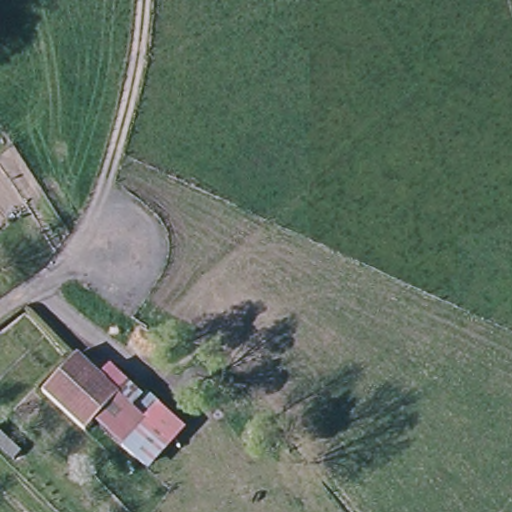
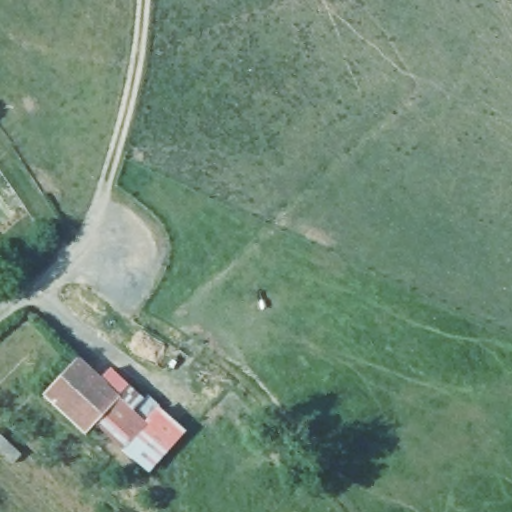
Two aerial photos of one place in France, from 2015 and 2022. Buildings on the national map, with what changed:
unchanged [(121,397),(96,424),(87,434),(42,394),(77,357),(121,397)]
unchanged [(96,424),(121,397),(147,422),(122,448),(96,424)]
unchanged [(160,408),(182,428),(145,468),(122,448),(147,422),(160,408)]

